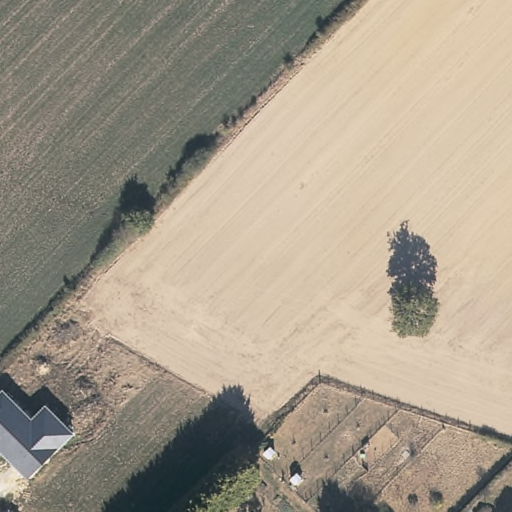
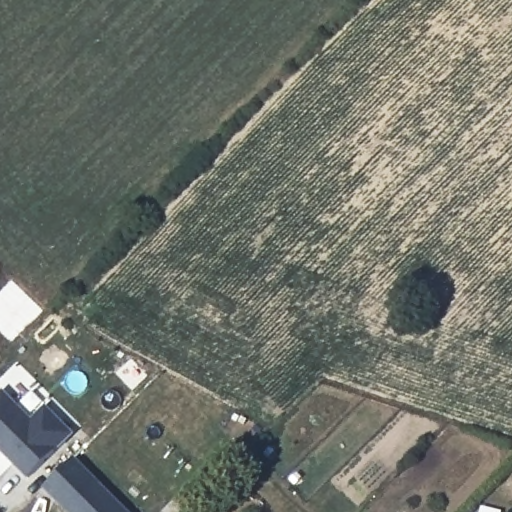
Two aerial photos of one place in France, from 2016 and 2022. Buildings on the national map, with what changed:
unchanged [(0,451),(0,395),(6,391),(31,419),(46,407),(73,433),(27,477),(0,451)]
new [(131,512),(67,512),(44,488),(76,456),(131,512)]

